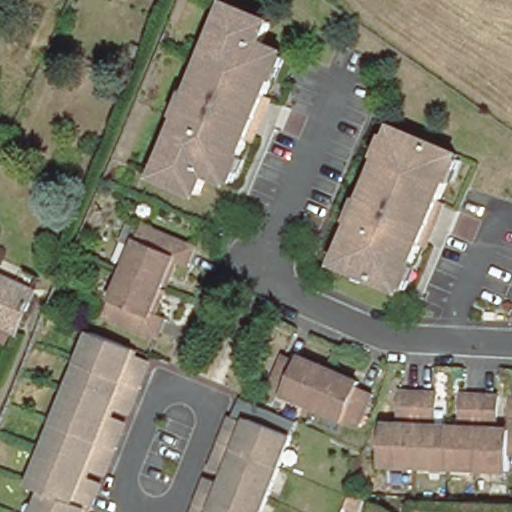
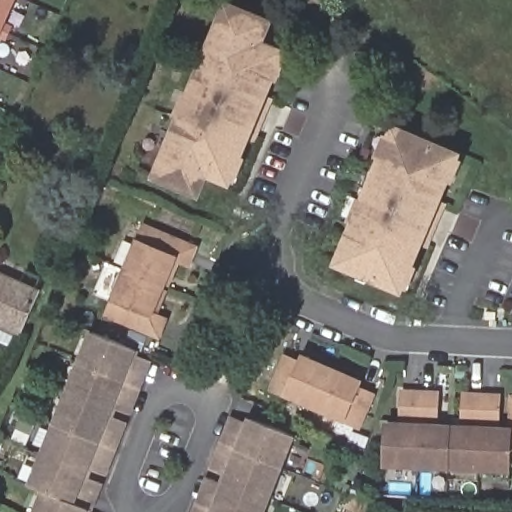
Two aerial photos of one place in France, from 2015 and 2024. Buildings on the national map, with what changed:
new [(0,30),(0,0),(13,0),(0,30)]
unchanged [(237,174),(231,171),(229,174),(224,172),(207,165),(201,180),(199,186),(174,175),(157,168),(157,167),(166,146),(164,145),(165,142),(170,137),(167,136),(169,132),(171,133),(171,127),(173,123),(175,124),(176,123),(181,109),(179,108),(180,105),(184,102),(182,101),(184,96),(186,97),(187,90),(188,86),(190,87),(208,46),(210,40),(208,39),(209,37),(214,32),(211,31),(213,26),(215,27),(216,21),(217,17),(219,18),(227,0),(240,0),(270,13),(262,34),(283,43),(292,47),(284,68),(282,67),(280,71),(273,69),(265,89),(271,92),(255,131),(249,128),(240,149),(246,151),(237,174)]
unchanged [(399,279),(398,281),(366,268),(364,274),(342,265),(344,259),(336,256),(337,254),(353,213),(347,211),(355,190),(362,192),(379,149),(374,148),(382,127),(388,129),(391,120),(454,146),(453,149),(459,151),(450,174),(444,172),(435,193),(441,196),(424,237),(417,234),(409,257),(415,259),(406,282),(399,279)]
unchanged [(125,273),(143,228),(194,250),(188,266),(175,261),(165,289),(125,273)]
unchanged [(0,333),(0,270),(37,286),(21,322),(17,321),(9,337),(0,333)]
unchanged [(165,289),(154,316),(165,320),(159,337),(107,317),(125,273),(165,289)]
unchanged [(32,487),(74,378),(92,332),(129,348),(136,351),(137,351),(135,357),(147,362),(132,402),(128,412),(115,407),(111,417),(124,422),(104,473),(91,468),(87,477),(100,482),(89,510),(89,512),(37,512),(45,492),(32,487)]
unchanged [(276,389),(288,359),(303,366),(307,359),(335,370),(319,408),(276,389)]
unchanged [(335,370),(362,382),(360,389),(376,395),(362,426),(319,408),(335,370)]
unchanged [(413,455),(381,453),(381,424),(381,414),(386,414),(397,414),(397,394),(398,383),(404,383),(415,383),(413,455)]
unchanged [(415,383),(432,384),(432,416),(444,417),(443,457),(413,455),(415,383)]
unchanged [(444,417),(459,418),(460,386),(476,387),(473,459),(443,457),(444,417)]
unchanged [(476,387),(493,388),(492,419),(506,420),(505,444),(504,460),(473,459),(476,387)]
unchanged [(508,388),(512,389),(512,445),(505,444),(506,420),(508,388)]
unchanged [(223,483),(227,474),(214,469),(225,440),(234,417),(246,422),(249,417),(257,420),(293,434),(282,463),(263,512),(197,512),(210,478),(223,483)]

